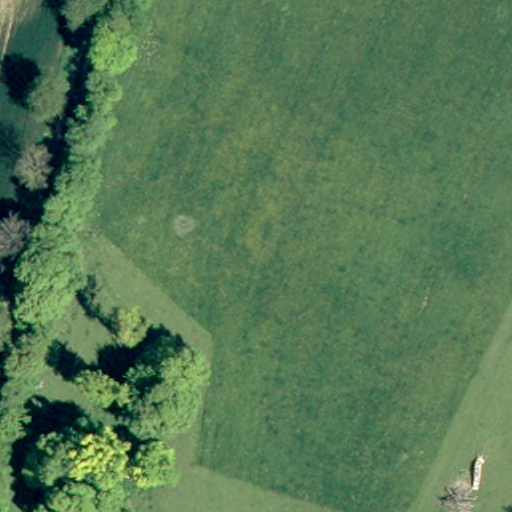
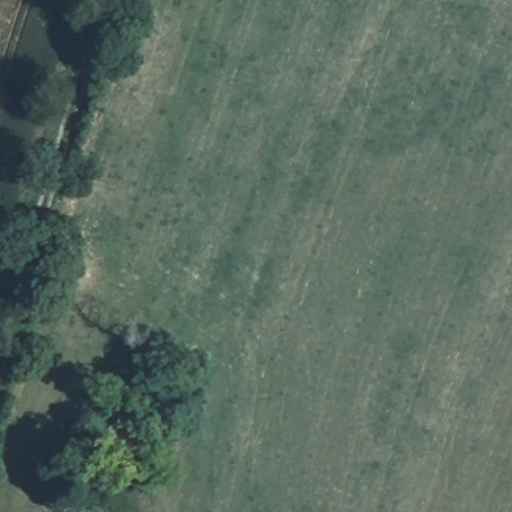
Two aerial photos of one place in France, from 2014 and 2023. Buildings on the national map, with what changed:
unchanged [(72,512),(76,503),(99,512),(72,512)]

